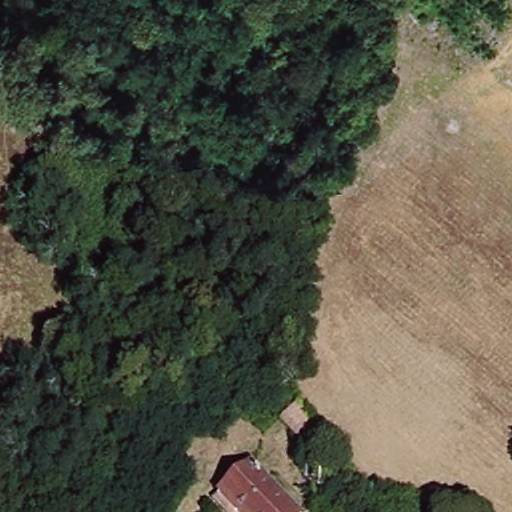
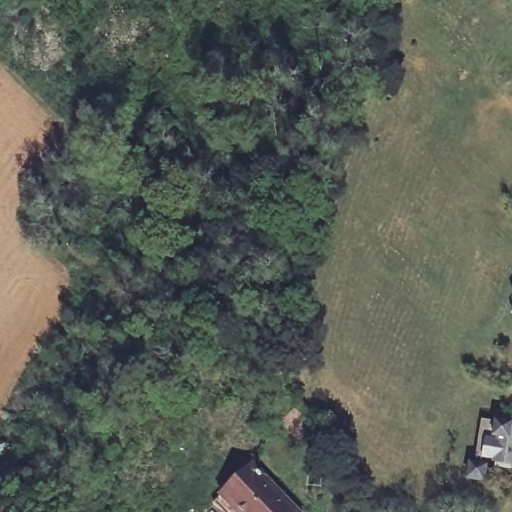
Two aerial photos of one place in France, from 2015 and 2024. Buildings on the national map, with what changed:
unchanged [(296,415),(305,433),(324,450),(311,465),(280,436),(296,415)]
new [(512,432),(512,467),(500,465),(500,462),(487,460),(492,428),(512,432)]
unchanged [(301,512),(232,512),(220,502),(255,458),(310,501),(301,512)]

